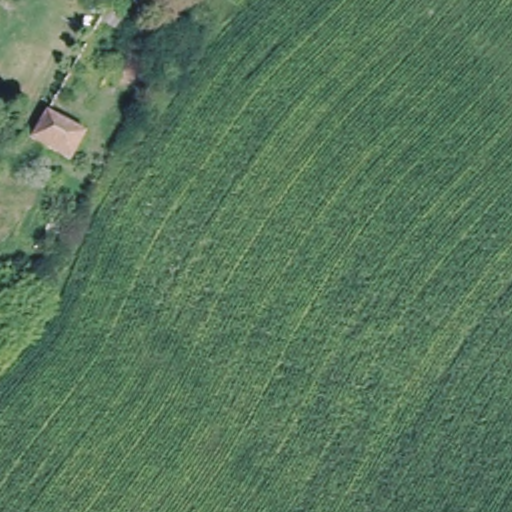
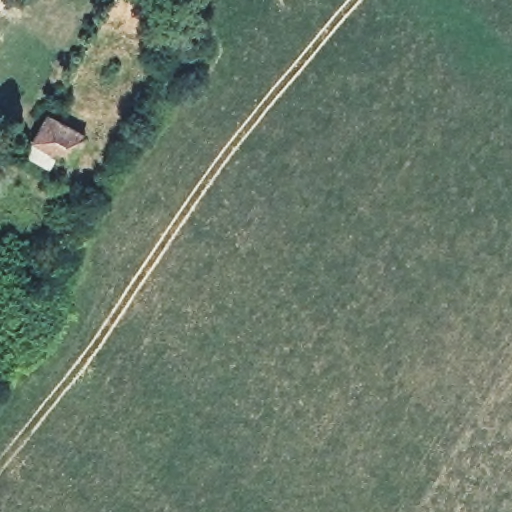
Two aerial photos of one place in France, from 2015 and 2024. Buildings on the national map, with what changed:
unchanged [(86,133),(70,159),(31,136),(47,110),(86,133)]

